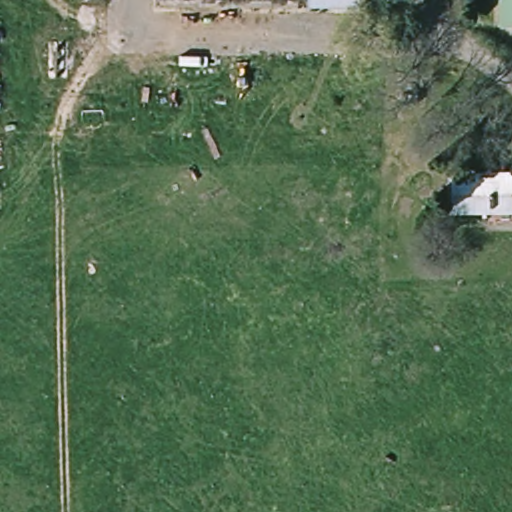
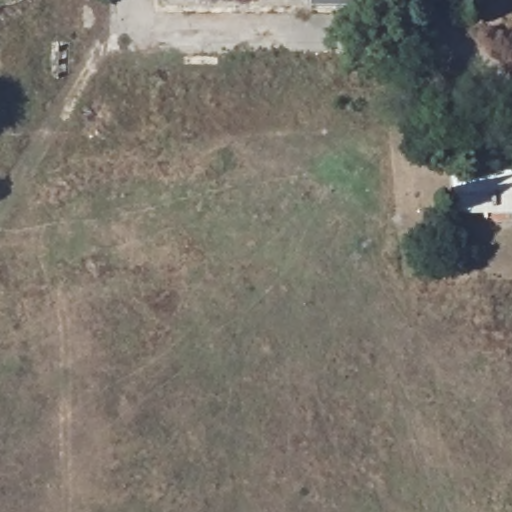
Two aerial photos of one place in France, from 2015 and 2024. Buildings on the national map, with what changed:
unchanged [(512,28),(500,28),(500,0),(512,0),(512,28)]
unchanged [(512,208),(449,209),(447,172),(512,171),(512,208)]

